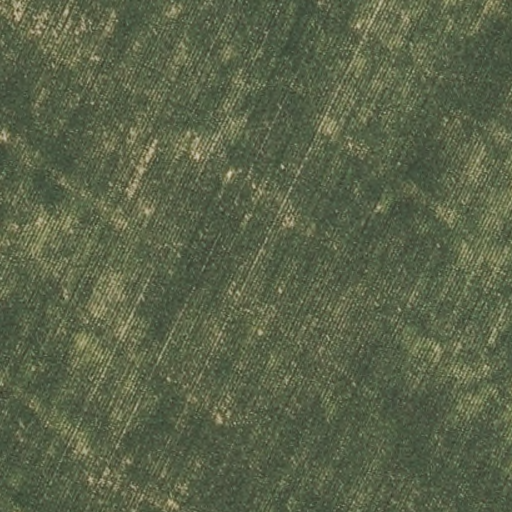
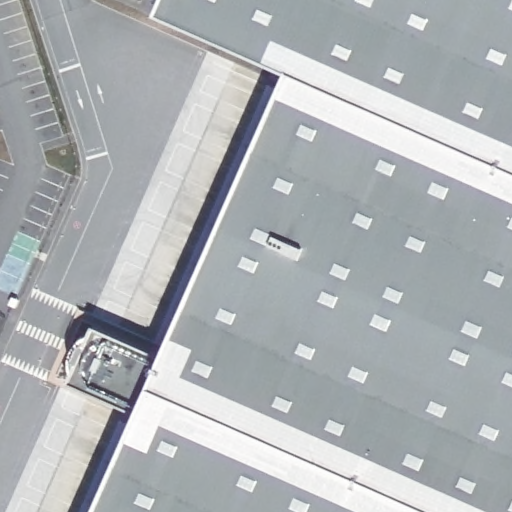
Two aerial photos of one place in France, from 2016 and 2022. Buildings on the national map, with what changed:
new [(140,417),(70,382),(96,325),(167,360),(291,71),(162,11),(167,0),(512,0),(512,512),(98,512),(140,417)]

